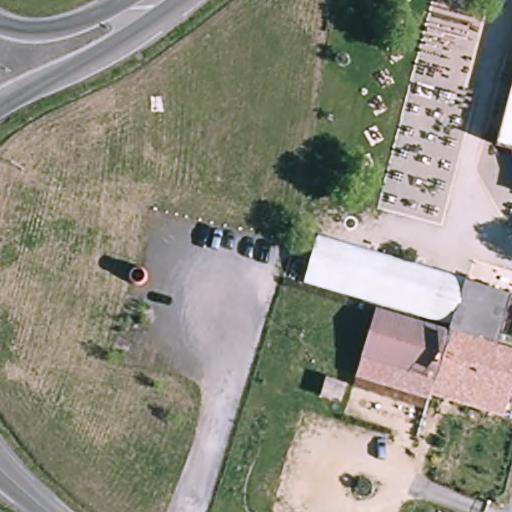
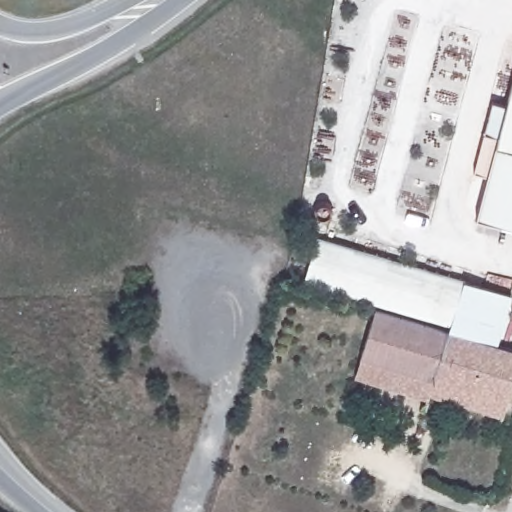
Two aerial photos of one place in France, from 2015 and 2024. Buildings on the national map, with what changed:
unchanged [(512,86),(512,147),(497,143),(512,86)]
new [(474,218),(497,143),(512,147),(512,228),(474,218)]
unchanged [(465,280),(463,286),(448,332),(371,307),(301,284),(316,238),(465,280)]
unchanged [(463,286),(506,299),(492,346),(448,332),(463,286)]
unchanged [(492,346),(512,352),(512,362),(495,356),(487,380),(496,384),(487,409),(473,404),(477,392),(356,356),(371,307),(448,332),(492,346)]

